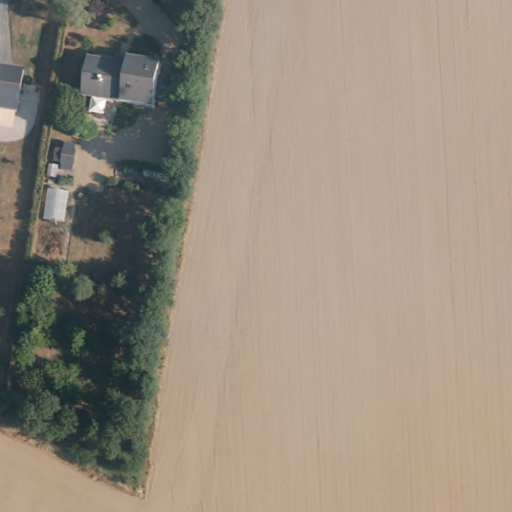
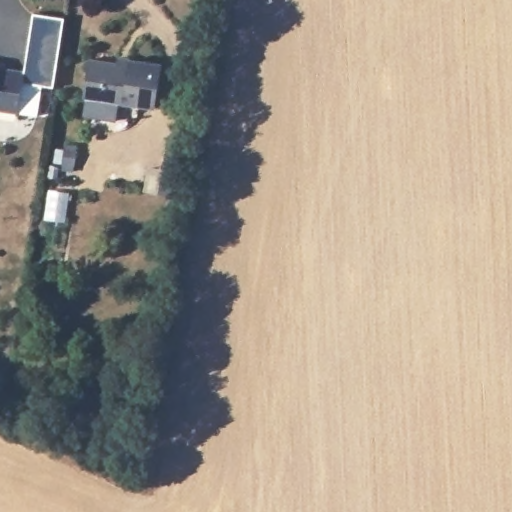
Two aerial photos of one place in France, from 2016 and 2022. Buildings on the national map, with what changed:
new [(33,12),(64,17),(53,85),(22,81),(23,70),(33,12)]
unchanged [(136,66),(137,61),(163,65),(157,108),(89,97),(95,60),(136,66)]
unchanged [(23,70),(18,112),(0,109),(0,66),(23,70)]
unchanged [(185,137),(179,170),(161,167),(167,135),(185,137)]

